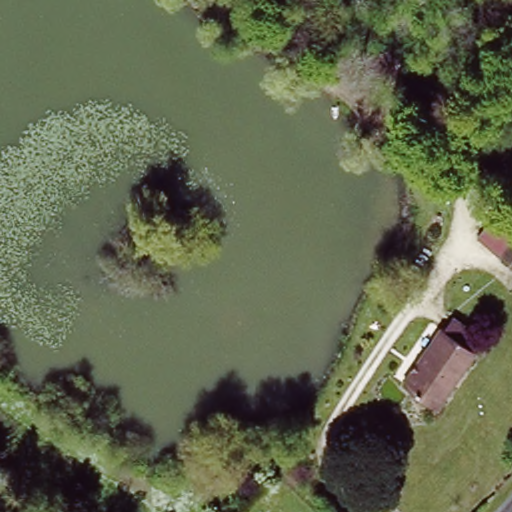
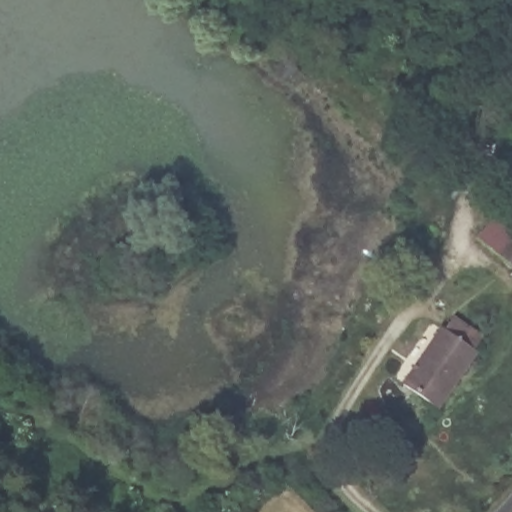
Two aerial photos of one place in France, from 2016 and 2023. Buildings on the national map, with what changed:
unchanged [(494,248),(512,228),(512,264),(494,248)]
unchanged [(441,326),(445,328),(455,313),(485,333),(475,349),(479,351),(440,406),(403,381),(441,326)]

